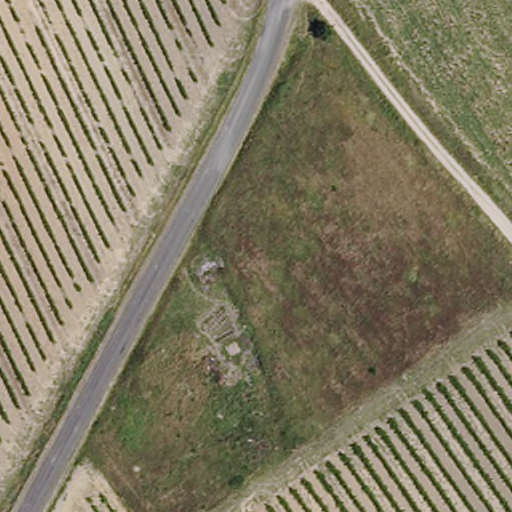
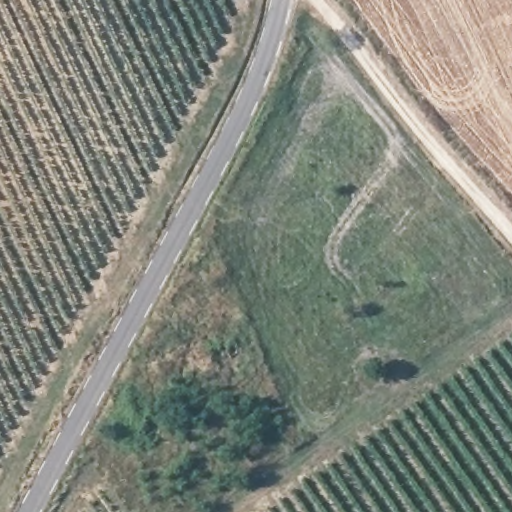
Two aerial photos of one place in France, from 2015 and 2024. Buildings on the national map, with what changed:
[]

